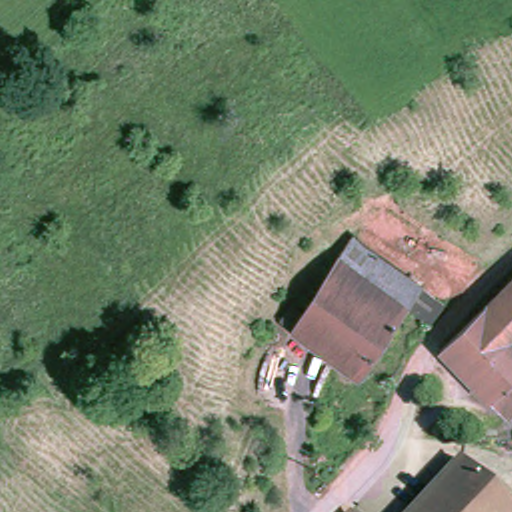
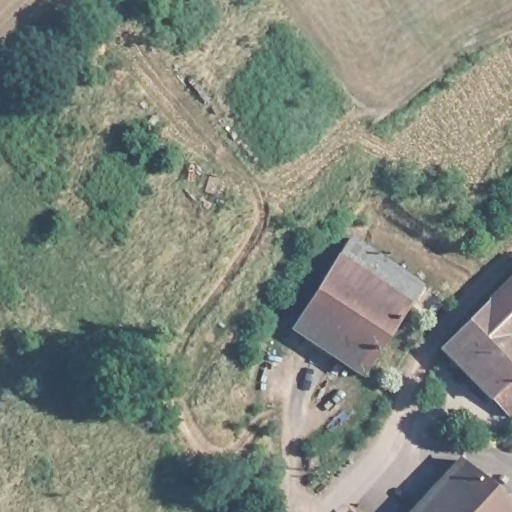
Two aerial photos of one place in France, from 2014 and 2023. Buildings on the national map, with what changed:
unchanged [(299,329),(344,259),(355,237),(389,261),(424,285),(412,304),(367,373),(299,329)]
unchanged [(505,290),(512,284),(512,297),(505,290)]
unchanged [(505,290),(512,297),(512,382),(490,401),(444,350),(505,290)]
unchanged [(508,512),(418,512),(459,468),(508,512)]

